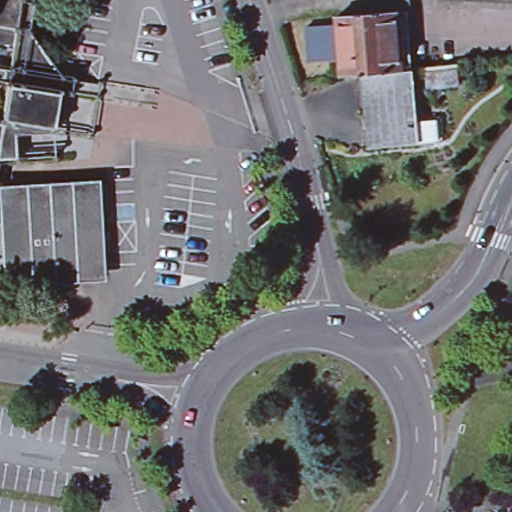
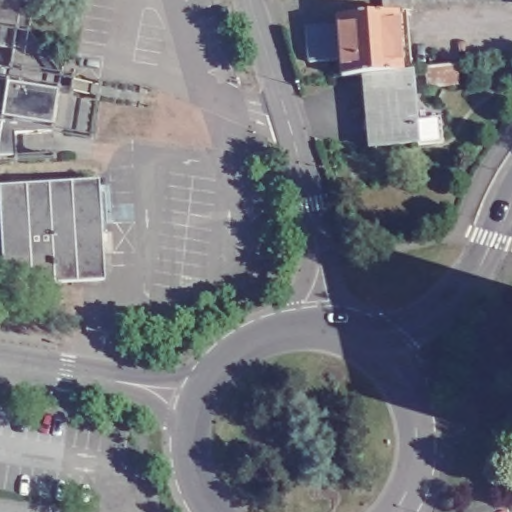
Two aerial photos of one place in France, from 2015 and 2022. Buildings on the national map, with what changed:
unchanged [(31,33),(65,75),(57,132),(16,133),(17,160),(0,161),(0,0),(36,0),(31,33)]
unchanged [(403,8),(380,11),(379,0),(403,0),(403,8)]
unchanged [(510,3),(425,1),(405,0),(510,0),(510,3)]
unchanged [(332,16),(401,10),(406,68),(374,72),(358,74),(337,75),(336,60),(333,25),(332,16)]
unchanged [(333,25),(336,60),(305,62),(302,27),(333,25)]
unchanged [(374,72),(406,69),(412,141),(365,146),(358,74),(374,72)]
unchanged [(105,81),(96,138),(57,132),(65,75),(105,81)]
unchanged [(57,132),(57,159),(17,160),(16,133),(57,132)]
unchanged [(95,190),(100,282),(8,285),(4,193),(95,190)]

